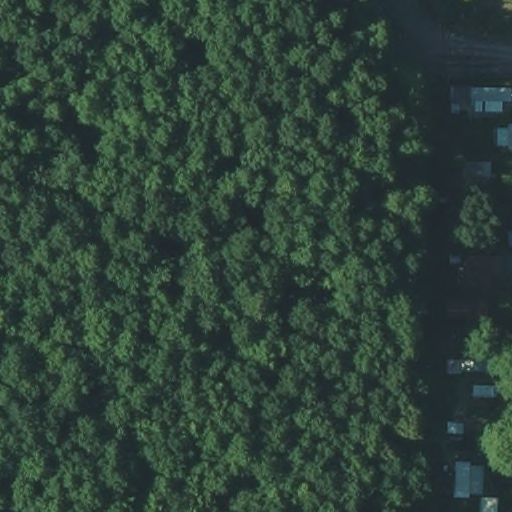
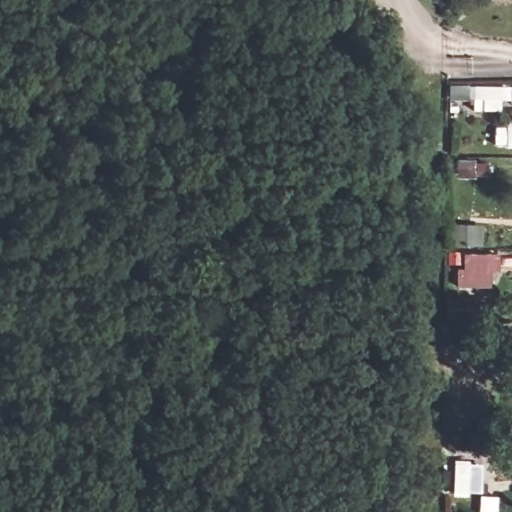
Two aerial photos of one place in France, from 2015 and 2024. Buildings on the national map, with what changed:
unchanged [(503,290),(456,290),(456,270),(460,270),(463,257),(468,231),(482,233),(481,251),(501,252),(503,290)]

